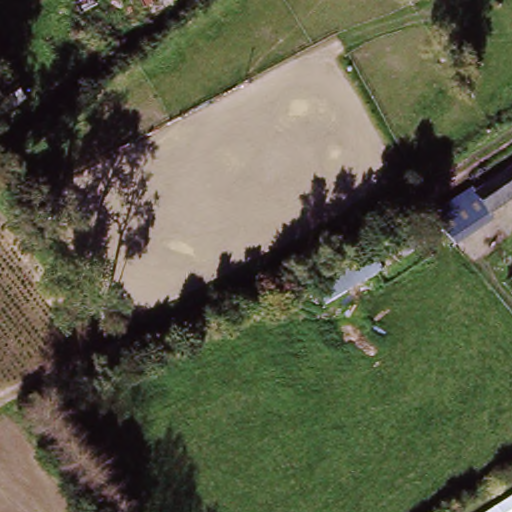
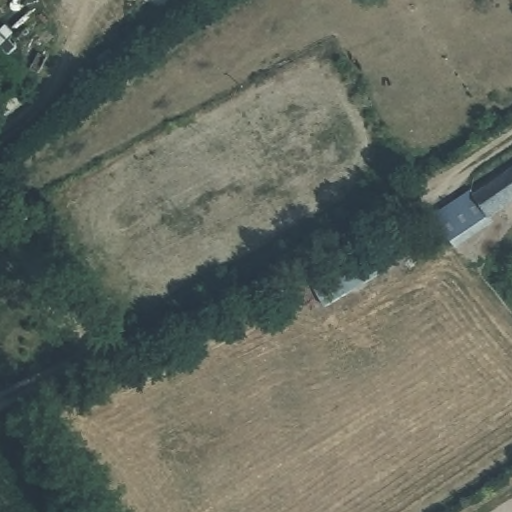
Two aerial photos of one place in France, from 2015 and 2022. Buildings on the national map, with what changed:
unchanged [(512,165),(512,197),(477,216),(463,191),(512,165)]
unchanged [(415,220),(432,251),(326,303),(311,274),(415,220)]

